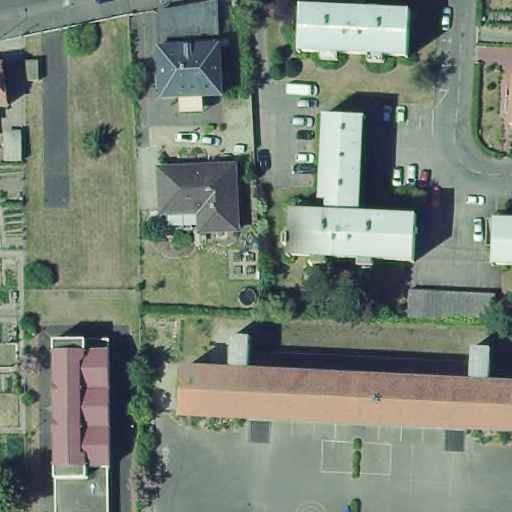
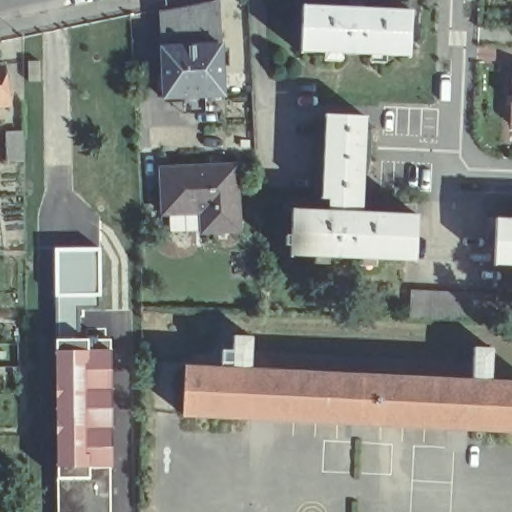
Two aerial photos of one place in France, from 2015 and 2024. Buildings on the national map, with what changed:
unchanged [(299,9),(299,11),(343,14),(344,3),(359,4),(359,14),(403,16),(404,14),(405,14),(403,61),(296,57),(296,58),(294,58),(297,9),(299,9)]
unchanged [(153,17),(213,6),(216,49),(155,52),(153,17)]
unchanged [(216,49),(218,99),(157,102),(155,52),(216,49)]
unchanged [(4,105),(0,105),(0,82),(4,105)]
unchanged [(512,86),(512,125),(510,125),(512,86)]
unchanged [(326,218),(321,217),(321,204),(313,204),(313,202),(314,201),(319,121),(316,121),(317,119),(359,121),(359,124),(351,123),(347,219),(326,218)]
unchanged [(23,162),(5,162),(5,135),(22,134),(23,162)]
unchanged [(201,203),(163,205),(161,161),(234,158),(237,222),(213,222),(201,223),(201,203)]
unchanged [(288,212),(288,216),(321,217),(326,218),(347,219),(408,222),(408,219),(409,220),(408,267),(408,268),(407,268),(406,268),(406,267),(284,260),(284,262),(283,262),(285,214),(288,212)]
unchanged [(491,225),(512,226),(512,270),(488,269),(488,270),(486,270),(488,222),(491,222),(491,225)]
new [(100,246),(101,296),(54,297),(53,248),(100,246)]
unchanged [(474,324),(461,323),(447,323),(433,322),(419,321),(404,320),(404,306),(405,295),(419,296),(434,296),(448,297),(463,297),(476,298),(491,298),(489,325),(474,324)]
unchanged [(226,342),(245,343),(245,360),(467,370),(468,353),(487,354),(485,388),(512,390),(512,436),(176,421),(178,374),(224,376),(226,342)]
unchanged [(106,472),(103,472),(103,512),(51,512),(49,344),(104,343),(106,472)]

